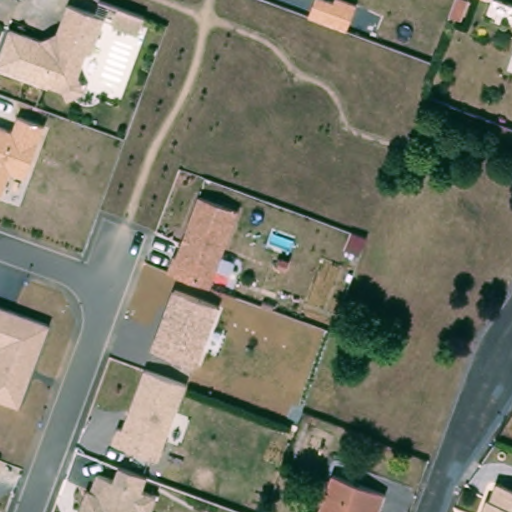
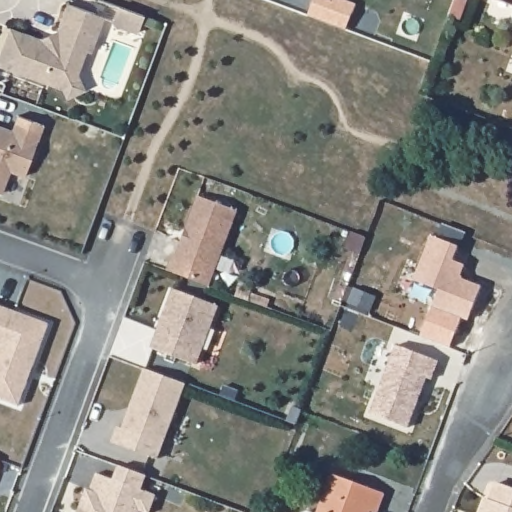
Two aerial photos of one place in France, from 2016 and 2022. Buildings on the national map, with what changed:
new [(327,0),(333,3),(334,0),(343,0),(357,6),(347,32),(308,17),(315,0),(327,0)]
unchanged [(66,96),(61,84),(45,78),(0,63),(0,53),(9,25),(41,35),(57,28),(67,1),(104,15),(91,50),(86,49),(77,72),(84,88),(66,96)]
new [(118,6),(144,15),(138,34),(114,25),(113,21),(118,6)]
unchanged [(25,177),(10,172),(2,193),(0,192),(0,124),(12,129),(16,114),(45,124),(25,177)]
unchanged [(240,209),(210,287),(168,273),(197,194),(240,209)]
new [(460,246),(455,260),(465,265),(462,274),(465,279),(482,285),(469,320),(433,307),(439,289),(413,280),(431,234),(460,246)]
unchanged [(217,307),(196,367),(151,349),(172,289),(217,307)]
unchanged [(52,324),(25,406),(0,395),(0,302),(52,324)]
new [(439,362),(433,380),(427,378),(408,428),(370,414),(396,345),(439,362)]
unchanged [(184,383),(157,459),(112,441),(117,426),(122,428),(143,368),(184,383)]
unchanged [(78,511),(87,488),(91,489),(97,472),(156,494),(150,512),(148,512),(140,509),(139,512),(78,512),(78,511)]
unchanged [(334,475),(384,493),(378,512),(373,512),(371,512),(321,512),(334,475)]
unchanged [(512,512),(479,512),(484,500),(494,504),(500,487),(512,491),(512,512)]
unchanged [(303,510),(308,512),(302,512),(303,510)]

